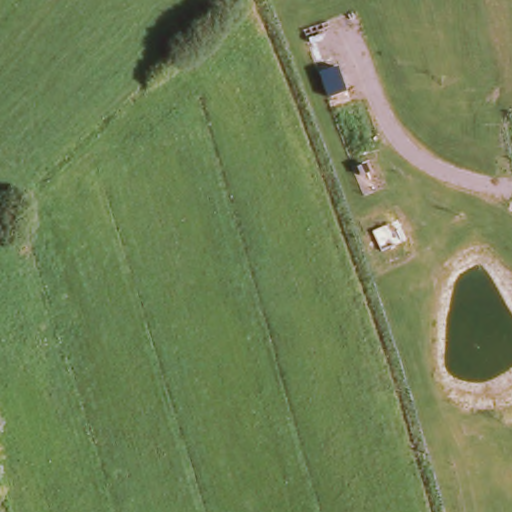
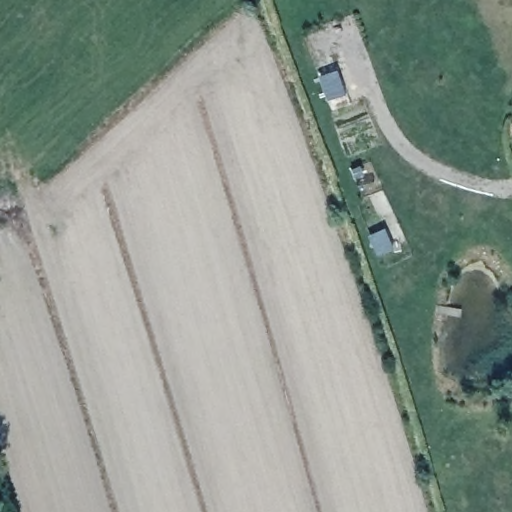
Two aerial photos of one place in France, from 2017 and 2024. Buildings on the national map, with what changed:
[]

